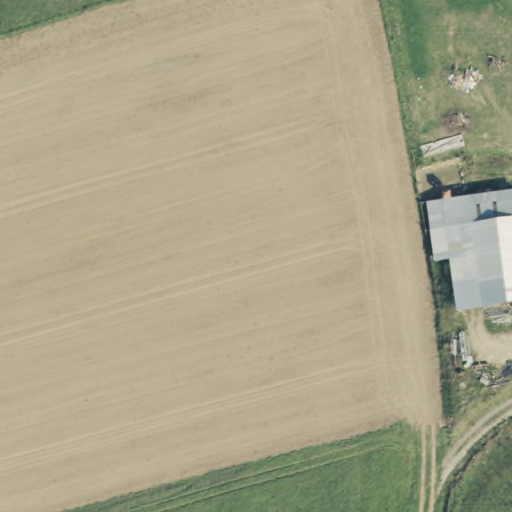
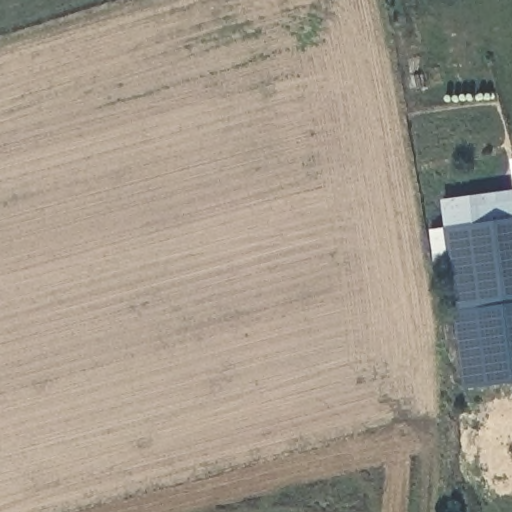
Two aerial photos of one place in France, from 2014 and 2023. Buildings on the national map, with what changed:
unchanged [(449,260),(432,263),(425,202),(512,190),(512,306),(456,312),(449,260)]
new [(467,388),(456,312),(512,306),(512,382),(467,388)]

